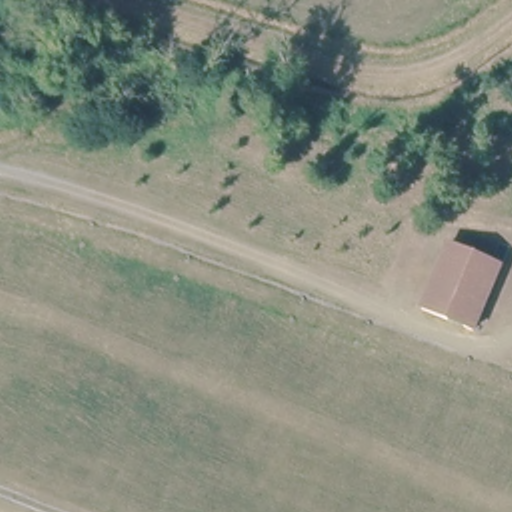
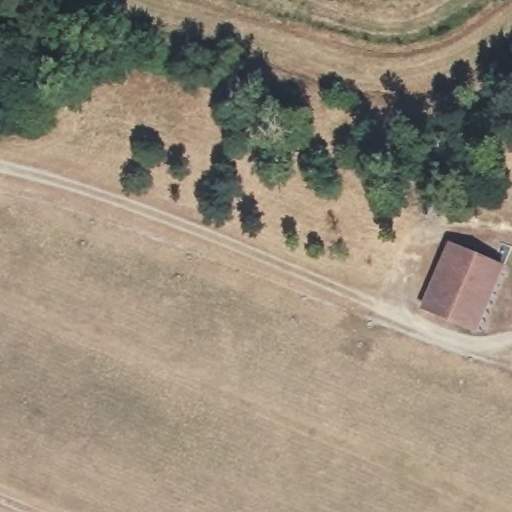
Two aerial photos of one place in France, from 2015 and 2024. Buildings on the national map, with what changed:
unchanged [(500,268),(470,332),(420,307),(449,244),(500,268)]

